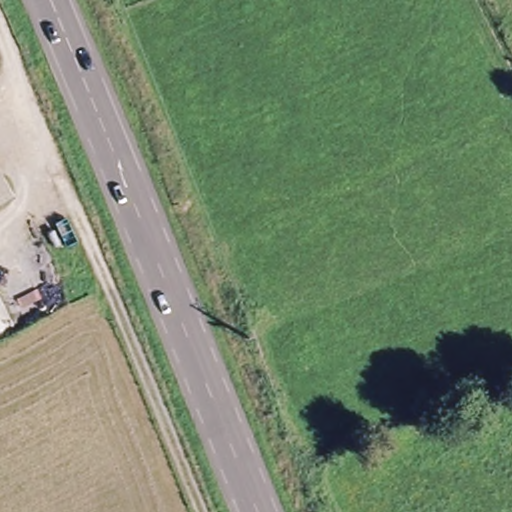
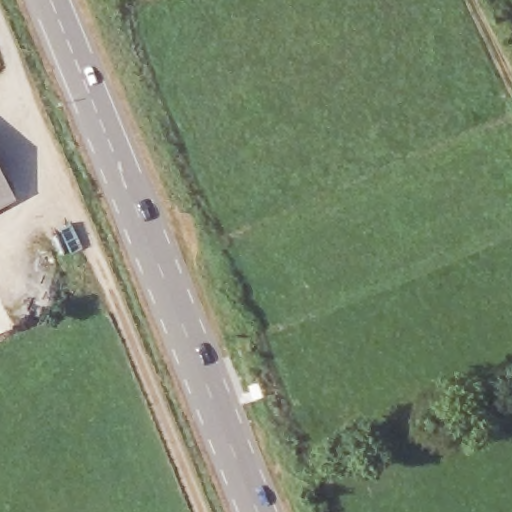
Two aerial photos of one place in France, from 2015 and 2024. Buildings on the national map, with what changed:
new [(0,205),(0,168),(15,197),(0,205)]
demolished [(10,192),(0,197),(0,171),(10,192)]

